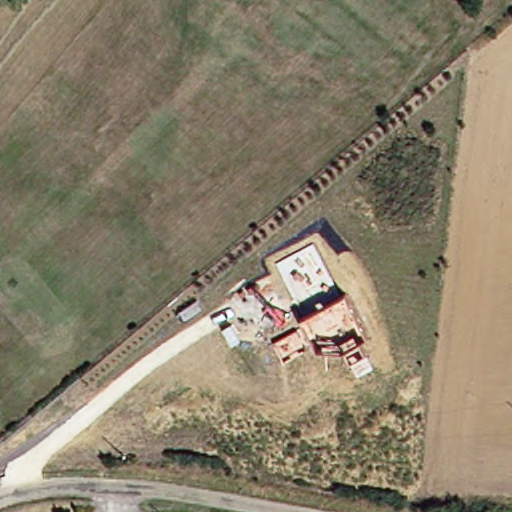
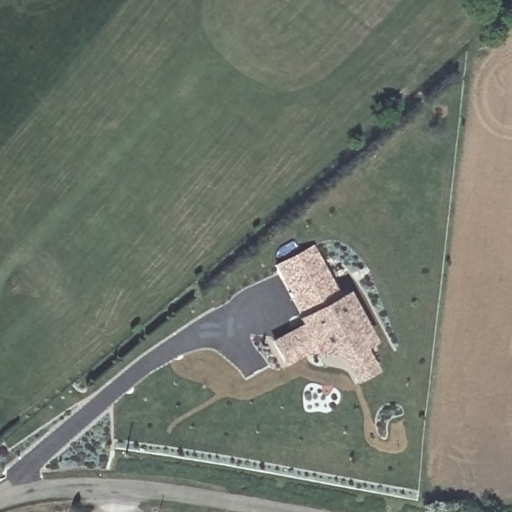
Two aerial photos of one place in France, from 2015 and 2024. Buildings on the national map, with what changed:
new [(338,296),(296,318),(271,265),(311,245),(338,296)]
new [(298,321),(296,318),(348,291),(373,341),(365,347),(379,370),(357,382),(345,358),(316,356),(311,348),(283,368),(269,340),(298,321)]

